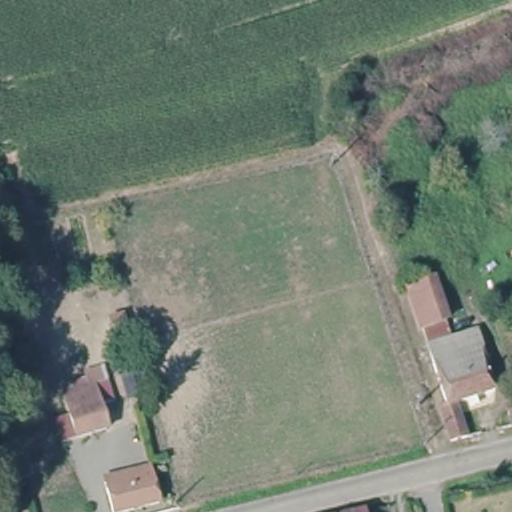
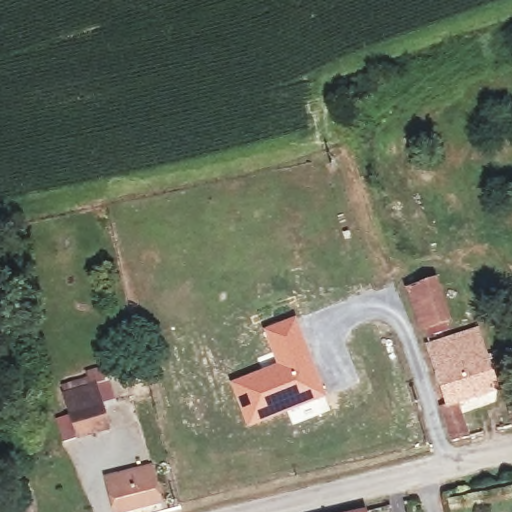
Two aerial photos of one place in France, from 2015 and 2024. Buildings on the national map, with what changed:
unchanged [(440,402),(447,398),(423,329),(420,328),(405,283),(438,273),(453,315),(448,317),(451,330),(478,323),(498,386),(458,400),(470,432),(450,438),(448,432),(440,402)]
unchanged [(129,312),(132,325),(110,329),(109,317),(129,312)]
new [(274,363),(262,330),(296,315),(326,395),(290,408),(245,427),(229,380),(274,363)]
unchanged [(139,363),(147,396),(130,401),(120,370),(139,363)]
unchanged [(61,445),(54,419),(68,416),(62,395),(67,394),(95,386),(90,371),(106,366),(119,407),(106,410),(114,431),(81,440),(61,445)]
unchanged [(507,407),(512,406),(512,429),(511,429),(510,425),(507,407)]
unchanged [(165,505),(136,512),(112,512),(102,476),(152,463),(165,505)]
unchanged [(374,512),(334,512),(371,502),(374,512)]

